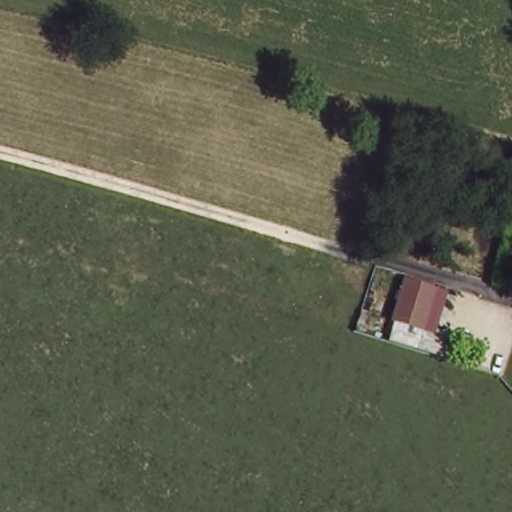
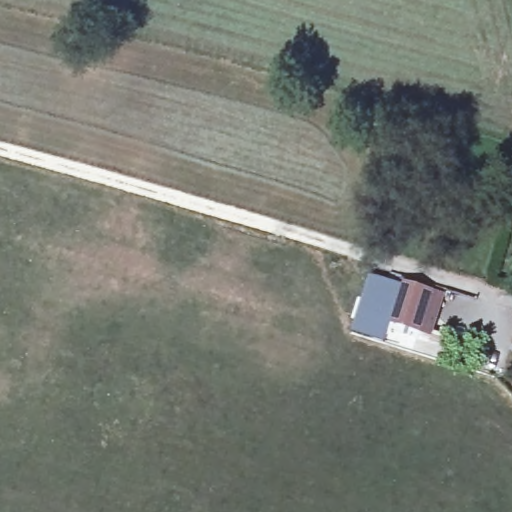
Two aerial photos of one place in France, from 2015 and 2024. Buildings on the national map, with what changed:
unchanged [(445,295),(433,333),(450,338),(445,361),(385,343),(402,281),(445,295)]

